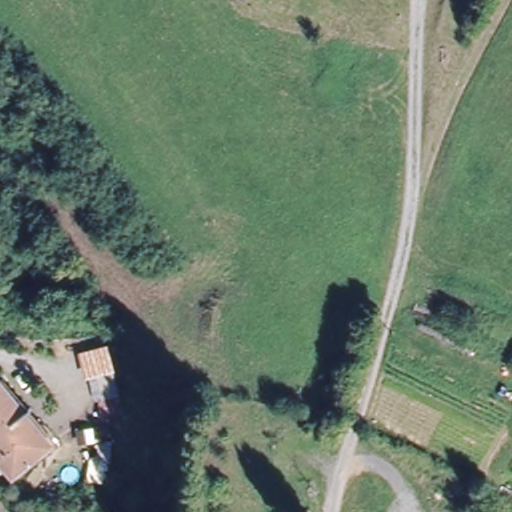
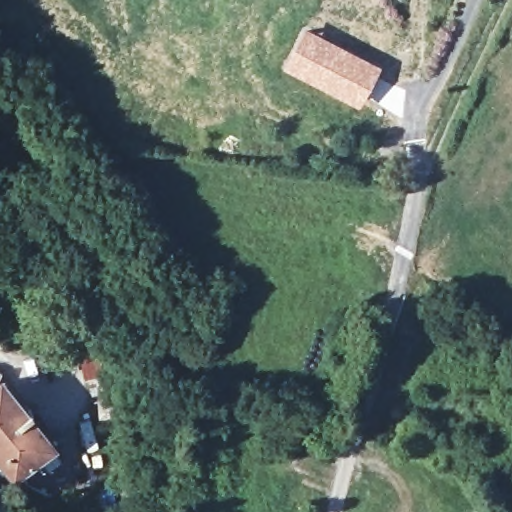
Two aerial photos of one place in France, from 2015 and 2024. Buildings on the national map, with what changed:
new [(381,66),(359,108),(281,66),(304,25),(381,66)]
new [(101,422),(97,402),(89,404),(79,354),(96,350),(97,358),(108,356),(121,418),(101,422)]
unchanged [(0,474),(0,382),(5,377),(56,441),(8,484),(0,474)]

